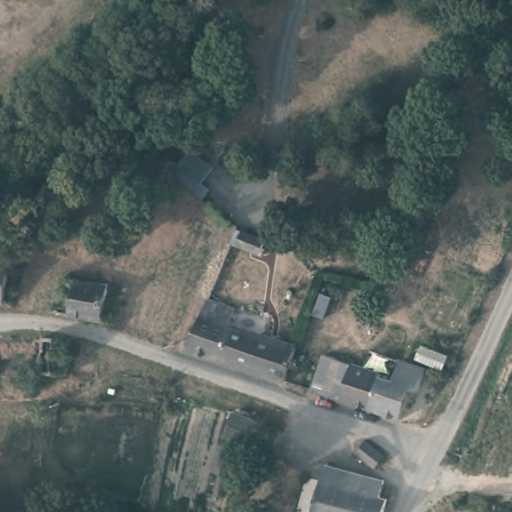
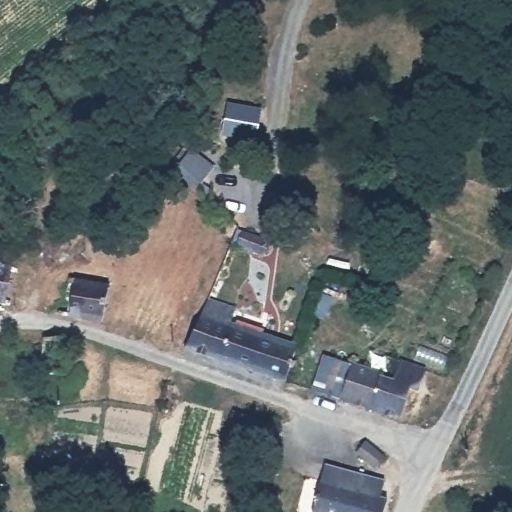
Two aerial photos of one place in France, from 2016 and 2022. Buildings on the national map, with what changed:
unchanged [(356,235),(356,237),(355,238),(354,239),(353,239),(352,240),(351,241),(350,241),(349,241),(347,241),(346,240),(345,240),(344,239),(343,239),(342,238),(342,237),(341,235),(341,234),(341,233),(341,232),(341,231),(342,229),(342,228),(343,227),(344,227),(345,226),(346,225),(348,225),(349,225),(350,225),(351,226),(352,226),(353,227),(354,227),(355,229),(356,229),(356,231),(357,232),(357,233),(357,234),(356,235)]
unchanged [(268,241),(264,253),(238,243),(242,231),(268,241)]
unchanged [(0,301),(0,265),(8,267),(24,270),(16,305),(0,301)]
unchanged [(73,277),(113,281),(105,321),(67,317),(73,277)]
unchanged [(286,372),(278,370),(183,338),(199,304),(289,335),(297,338),(286,372)]
unchanged [(381,373),(380,376),(369,407),(341,399),(328,395),(340,358),(354,363),(381,373)]
unchanged [(428,368),(418,391),(410,388),(399,417),(369,407),(380,376),(391,377),(399,359),(428,368)]
unchanged [(219,433),(230,406),(273,424),(263,449),(219,433)]
unchanged [(386,457),(378,466),(358,452),(366,442),(386,457)]
unchanged [(321,480),(326,463),(384,478),(380,494),(389,496),(384,512),(349,512),(356,490),(321,480)]
unchanged [(356,490),(349,512),(313,512),(321,480),(356,490)]

